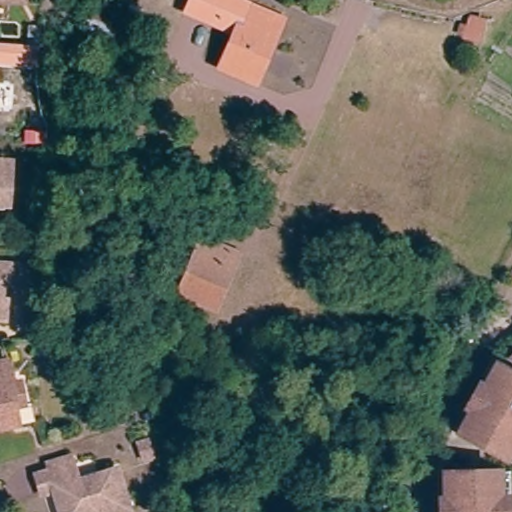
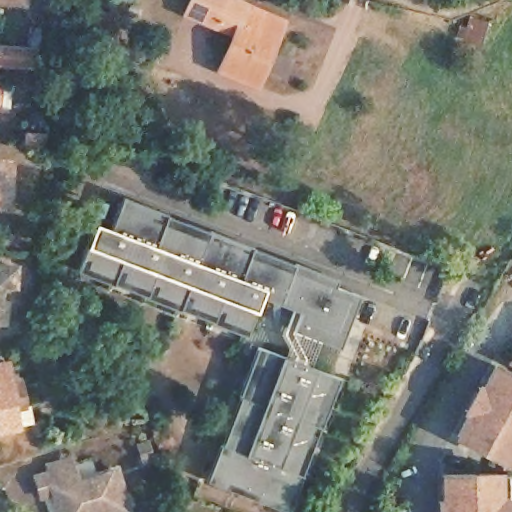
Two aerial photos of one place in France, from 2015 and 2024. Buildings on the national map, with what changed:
unchanged [(15,5),(0,5),(0,0),(15,0),(15,5)]
unchanged [(184,0),(252,0),(279,12),(251,76),(216,61),(232,25),(212,16),(182,3),(184,0)]
unchanged [(475,41),(463,37),(468,20),(480,25),(475,41)]
new [(335,284),(360,294),(341,346),(295,327),(302,310),(276,301),(281,288),(272,285),(271,289),(265,287),(257,311),(248,335),(80,269),(88,244),(97,221),(113,227),(124,196),(209,229),(210,227),(254,244),(253,247),(295,262),(296,260),(339,276),(335,284)]
demolished [(212,312),(175,296),(199,241),(234,256),(212,312)]
unchanged [(512,339),(512,368),(493,356),(512,339)]
new [(282,353),(318,367),(341,376),(290,511),(207,480),(259,345),(282,353)]
unchanged [(439,441),(477,372),(512,392),(512,443),(508,451),(496,473),(487,468),(439,441)]
unchanged [(1,385),(7,384),(10,396),(12,408),(3,411),(6,429),(0,430),(0,383),(1,385)]
unchanged [(118,512),(50,512),(45,491),(34,493),(29,474),(51,469),(50,462),(63,458),(65,465),(70,483),(109,473),(118,512)]
unchanged [(425,506),(425,481),(480,479),(490,479),(490,505),(490,512),(420,512),(420,506),(425,506)]

